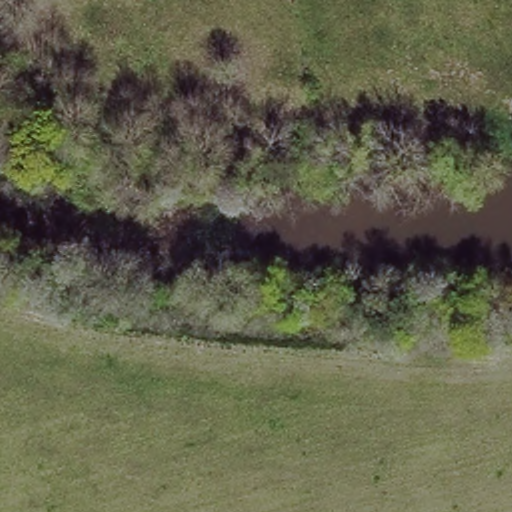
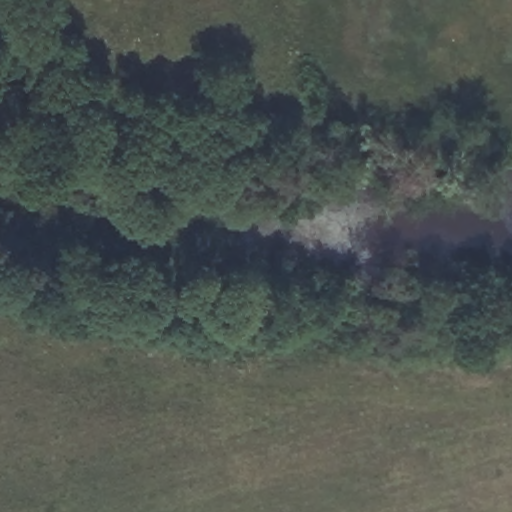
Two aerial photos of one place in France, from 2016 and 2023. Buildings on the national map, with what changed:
[]

